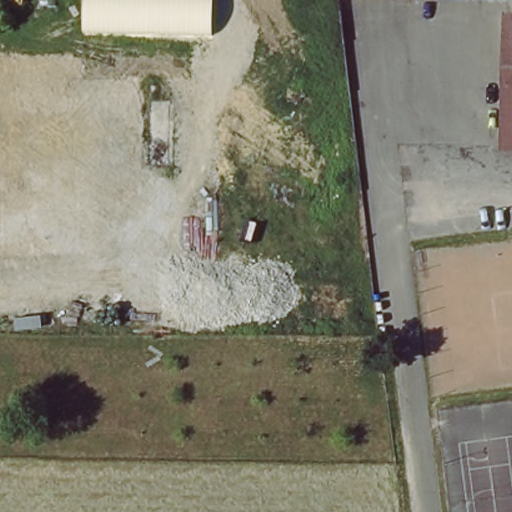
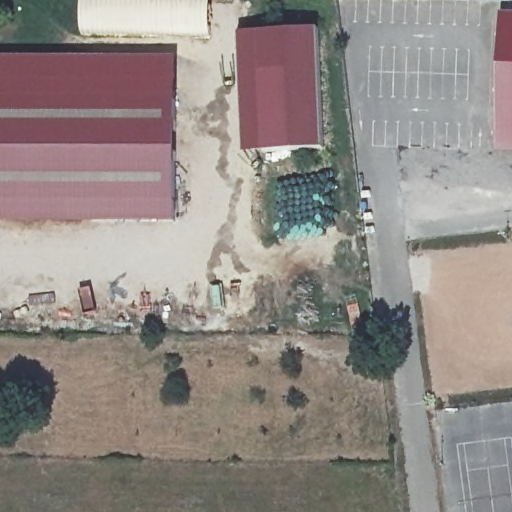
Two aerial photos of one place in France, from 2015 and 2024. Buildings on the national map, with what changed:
new [(81,0),(209,0),(208,30),(80,31),(81,0)]
unchanged [(503,80),(507,80),(509,13),(512,13),(512,141),(506,141),(507,129),(501,128),(503,80)]
new [(316,30),(322,150),(243,154),(237,33),(316,30)]
new [(174,224),(0,223),(0,99),(175,100),(174,224)]

